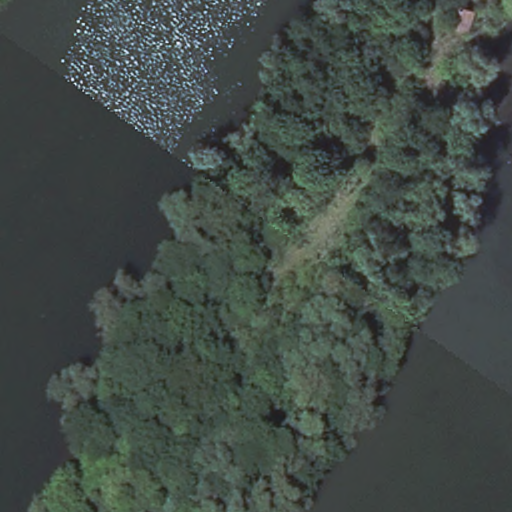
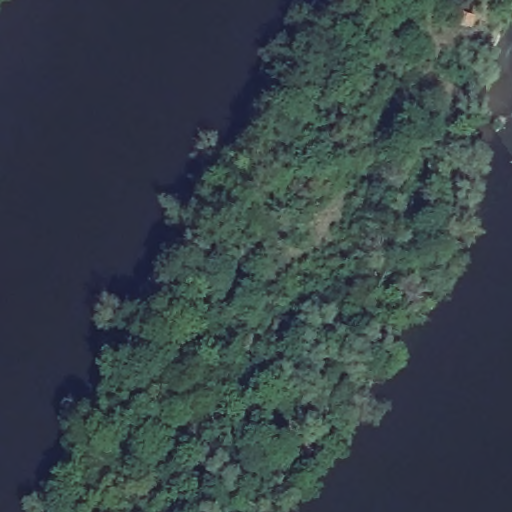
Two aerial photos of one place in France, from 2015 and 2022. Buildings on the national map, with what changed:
unchanged [(451,1),(472,8),(465,28),(445,22),(451,1)]

